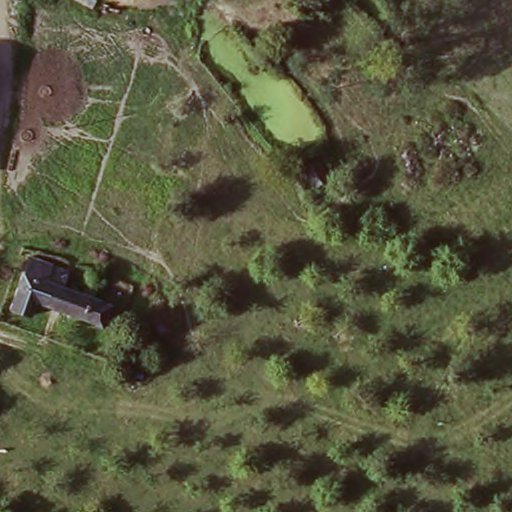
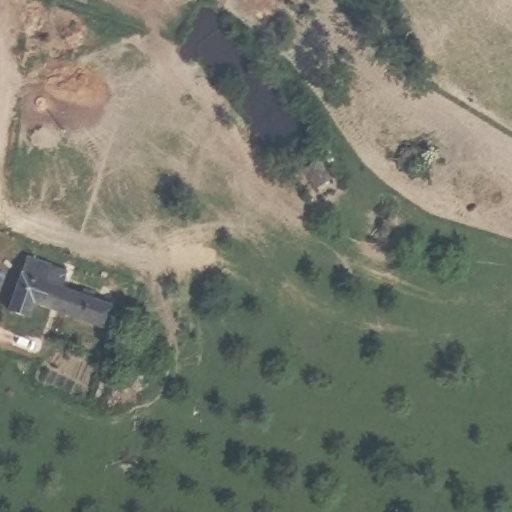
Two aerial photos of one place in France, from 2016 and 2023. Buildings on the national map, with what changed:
unchanged [(20,265),(63,276),(61,289),(113,302),(108,325),(36,307),(33,319),(8,314),(20,265)]

